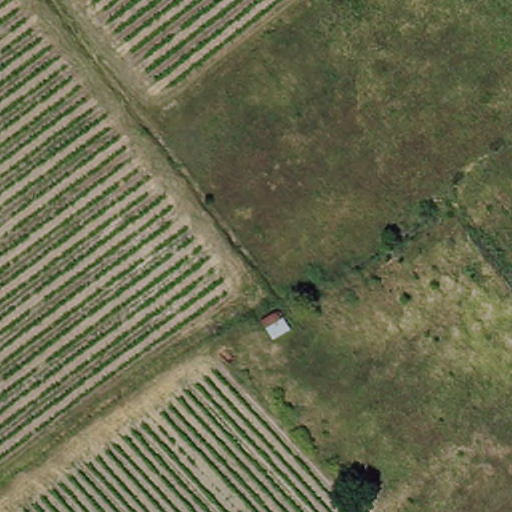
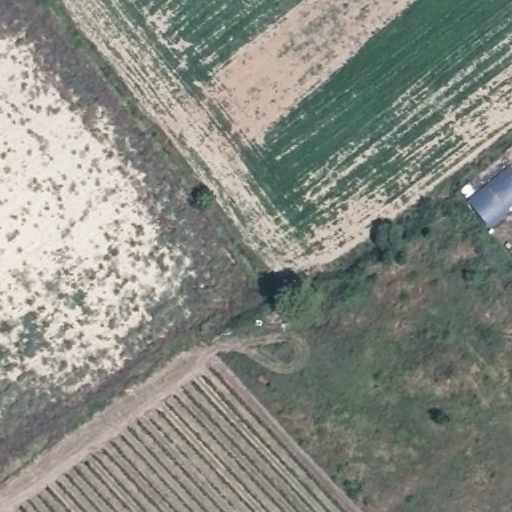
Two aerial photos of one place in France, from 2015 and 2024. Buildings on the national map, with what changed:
new [(512,208),(489,227),(467,199),(510,165),(512,168),(512,208)]
demolished [(275,344),(260,327),(277,309),(290,336),(275,344)]

